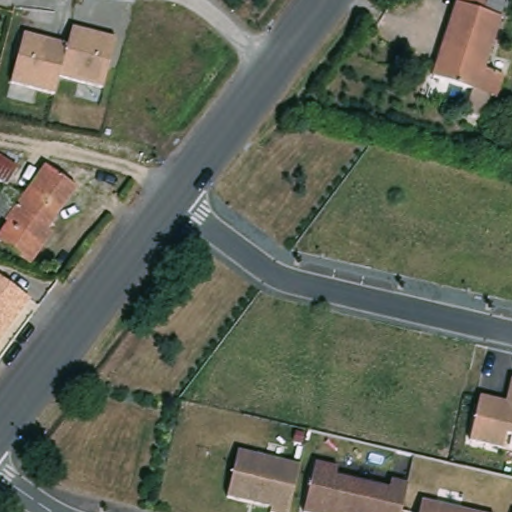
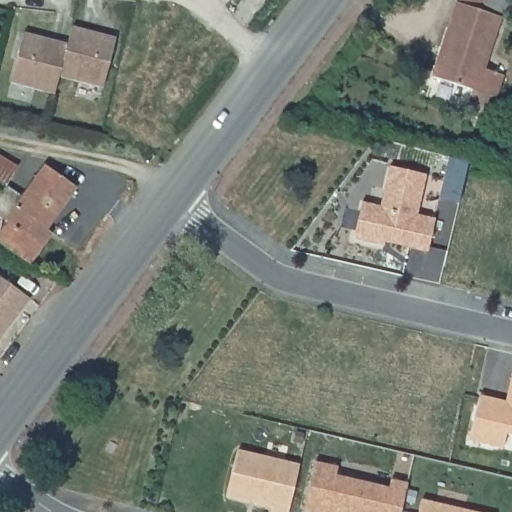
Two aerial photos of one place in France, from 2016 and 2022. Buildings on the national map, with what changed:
unchanged [(497,24),(495,23),(478,72),(499,80),(491,103),(484,100),(476,124),(459,118),(467,95),(428,82),(455,0),(481,0),(503,7),(497,24)]
unchanged [(60,76),(55,92),(10,81),(23,31),(71,41),(75,25),(121,36),(105,88),(60,76)]
unchanged [(18,167),(7,186),(0,182),(0,156),(18,167)]
unchanged [(83,187),(53,229),(58,232),(34,265),(0,240),(0,238),(13,222),(9,220),(50,164),(83,187)]
new [(385,242),(384,245),(354,238),(363,201),(382,205),(390,166),(426,174),(418,214),(433,218),(427,251),(385,242)]
unchanged [(30,297),(0,337),(0,276),(30,297)]
unchanged [(503,447),(470,440),(480,395),(506,401),(512,377),(512,434),(506,433),(503,447)]
unchanged [(270,512),(271,507),(227,496),(238,450),(299,464),(288,512),(270,512)]
unchanged [(338,466),(336,475),(389,487),(391,479),(408,482),(401,512),(303,512),(315,461),(338,466)]
unchanged [(476,512),(418,512),(422,499),(476,512)]

